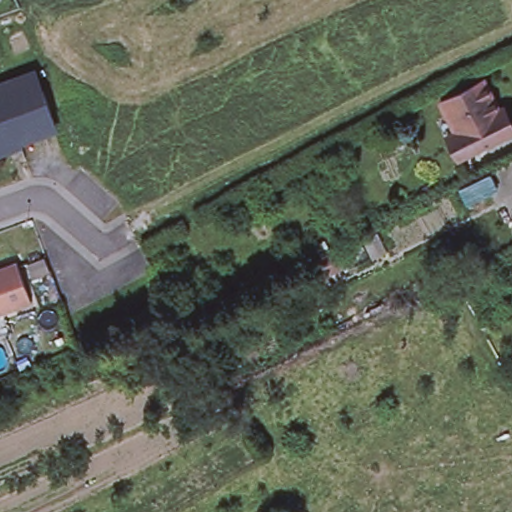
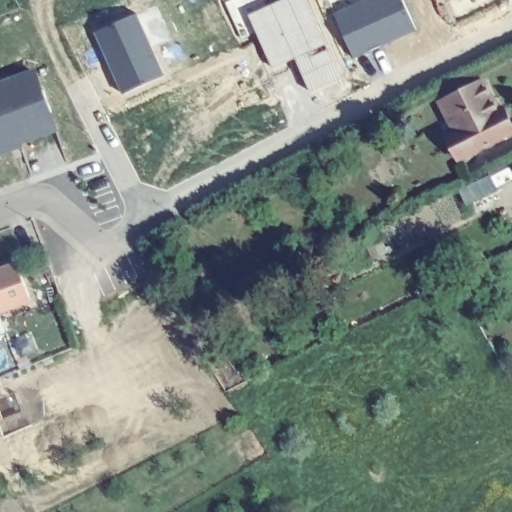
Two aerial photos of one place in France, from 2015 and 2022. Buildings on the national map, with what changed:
new [(285,0),(308,0),(344,78),(309,93),(295,60),(271,68),(249,16),(285,0)]
new [(367,0),(404,0),(418,32),(353,61),(334,13),(367,0)]
new [(136,15),(163,76),(122,94),(94,33),(136,15)]
unchanged [(43,89),(51,110),(49,111),(55,127),(18,140),(16,134),(6,138),(7,141),(0,144),(0,84),(34,71),(41,89),(43,89)]
unchanged [(492,95),(488,97),(493,108),(501,104),(512,126),(457,155),(446,133),(453,129),(438,98),(482,76),(492,95)]
unchanged [(31,301),(0,312),(0,266),(16,260),(31,301)]

